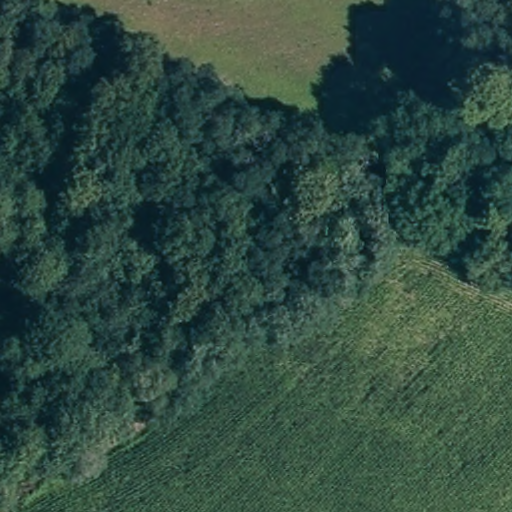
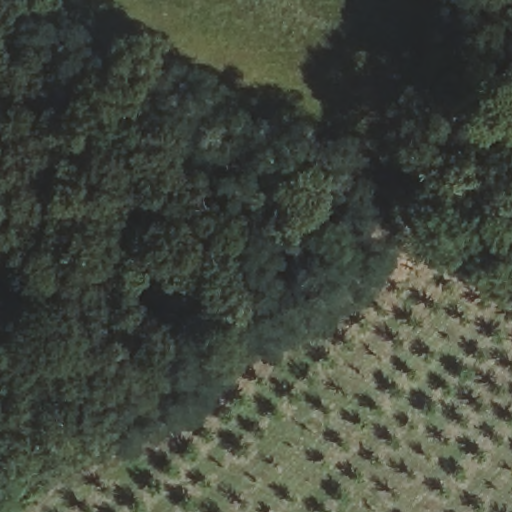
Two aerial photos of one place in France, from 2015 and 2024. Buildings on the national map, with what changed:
unchanged [(512,170),(512,191),(467,186),(470,164),(512,170)]

